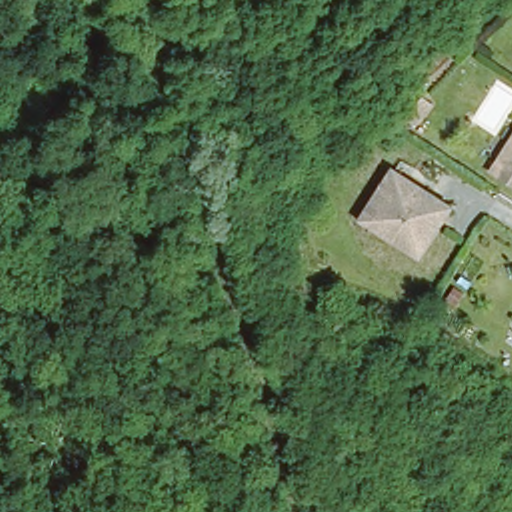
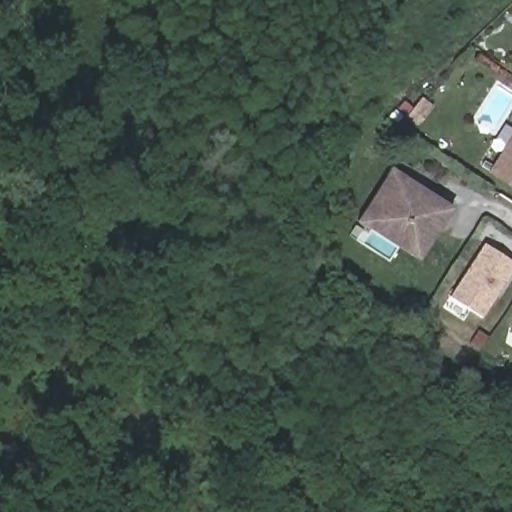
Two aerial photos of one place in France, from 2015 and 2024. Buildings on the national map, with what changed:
unchanged [(512,184),(490,170),(512,136),(512,184)]
unchanged [(366,222),(395,181),(438,209),(410,251),(366,222)]
new [(468,310),(461,322),(442,309),(485,245),(512,262),(512,271),(481,318),(468,310)]

